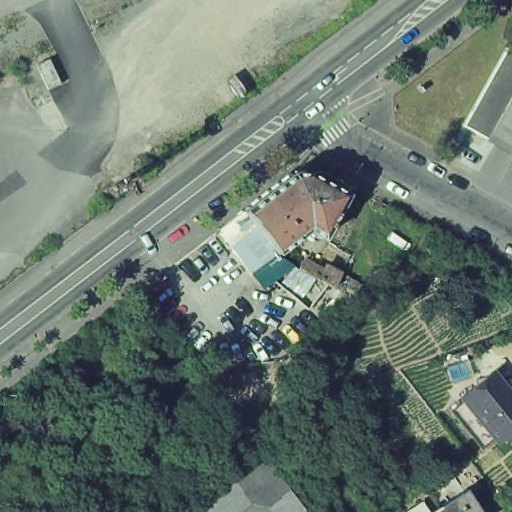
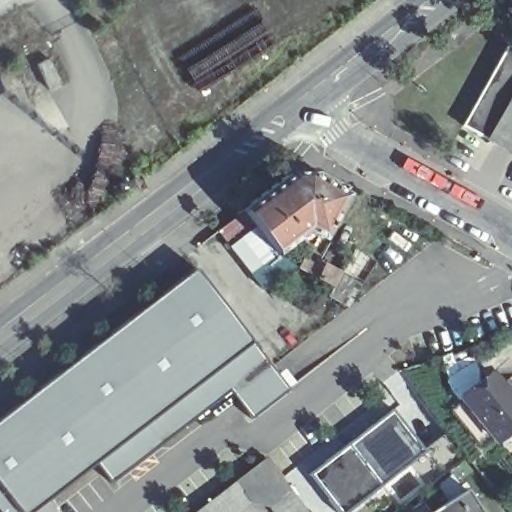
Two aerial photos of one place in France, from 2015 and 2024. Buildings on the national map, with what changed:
unchanged [(487,139),(462,126),(507,46),(512,48),(512,93),(487,139)]
unchanged [(487,139),(512,93),(512,153),(487,139)]
unchanged [(321,239),(307,231),(275,254),(270,248),(242,211),(290,174),(306,173),(345,195),(321,239)]
unchanged [(270,248),(275,254),(277,255),(294,265),(277,284),(245,255),(223,227),(242,211),(270,248)]
unchanged [(299,268),(304,260),(322,270),(324,266),(340,275),(340,274),(360,285),(352,299),(348,307),(312,287),(317,279),(299,269),(299,268)]
new [(68,512),(8,512),(0,503),(0,442),(197,282),(254,354),(68,512)]
unchanged [(491,368),(512,394),(512,424),(496,437),(460,393),(491,368)]
new [(379,486),(346,512),(338,512),(310,474),(347,445),(392,410),(423,452),(379,486)]
unchanged [(307,512),(273,512),(269,506),(250,502),(237,512),(194,512),(265,458),(307,512)]
unchanged [(484,512),(446,512),(442,505),(469,487),(484,512)]
unchanged [(446,512),(430,512),(442,505),(446,512)]

